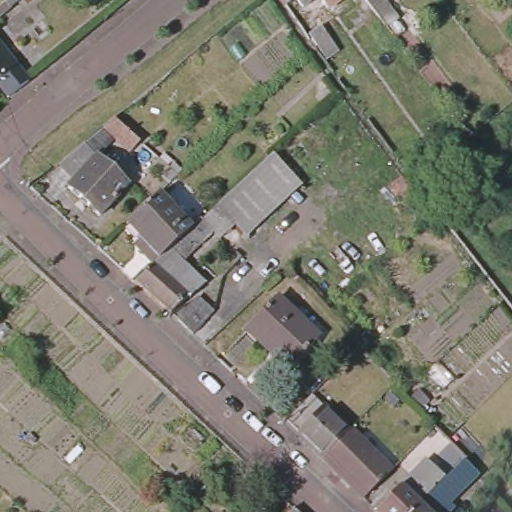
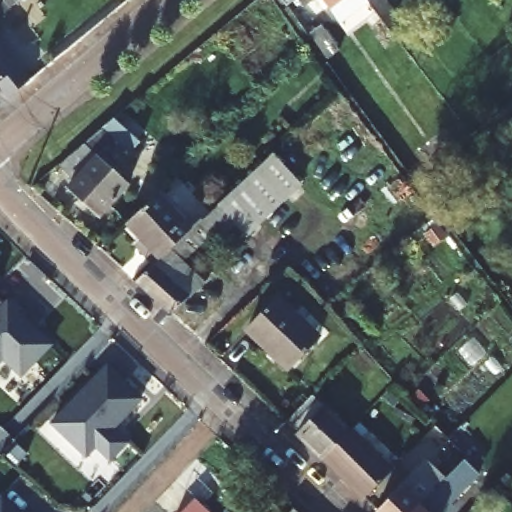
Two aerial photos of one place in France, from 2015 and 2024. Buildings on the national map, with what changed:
unchanged [(5,0),(18,0),(10,6),(5,0)]
unchanged [(292,0),(286,5),(282,0),(292,0)]
unchanged [(298,0),(312,0),(304,6),(298,0)]
unchanged [(322,0),(339,0),(329,8),(322,0)]
unchanged [(395,37),(388,43),(357,2),(360,0),(367,0),(374,10),(395,37)]
unchanged [(0,85),(0,42),(26,75),(5,91),(0,85)]
new [(129,154),(103,130),(114,118),(141,141),(129,154)]
unchanged [(81,144),(91,155),(124,184),(97,215),(63,187),(69,180),(56,164),(81,144)]
unchanged [(219,207),(274,154),(301,183),(246,235),(219,207)]
unchanged [(136,237),(123,222),(153,195),(186,231),(150,263),(138,249),(131,242),(136,237)]
unchanged [(208,231),(177,259),(199,283),(164,313),(131,281),(150,263),(186,231),(196,220),(208,231)]
new [(1,280),(0,281),(0,279),(1,280)]
new [(3,303),(8,298),(54,343),(23,379),(3,360),(0,363),(0,299),(3,303)]
unchanged [(186,302),(199,313),(183,329),(172,318),(186,302)]
unchanged [(243,332),(271,302),(311,340),(283,370),(243,332)]
new [(144,399),(115,429),(130,442),(110,463),(95,448),(85,457),(50,423),(108,364),(144,399)]
unchanged [(291,433),(294,430),(284,420),(306,395),(342,432),(318,458),(291,433)]
unchanged [(387,469),(359,498),(318,458),(342,432),(346,428),(387,469)]
unchanged [(372,512),(422,459),(442,478),(438,482),(423,497),(416,504),(408,512),(373,512),(372,512)]
unchanged [(429,512),(408,512),(416,504),(423,497),(438,482),(442,478),(461,459),(471,470),(429,512)]
new [(1,493),(22,512),(0,512),(0,494),(1,493)]
unchanged [(300,512),(289,512),(294,507),(300,512)]

